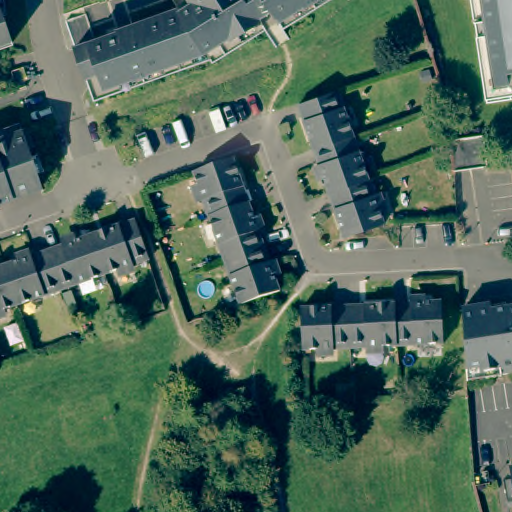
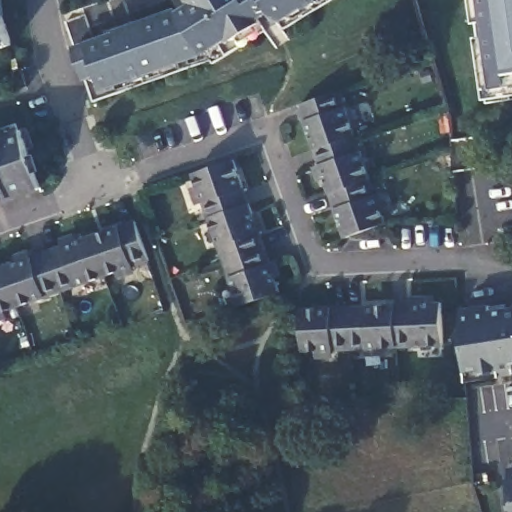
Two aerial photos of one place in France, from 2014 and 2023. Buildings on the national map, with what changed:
unchanged [(78,52),(74,40),(95,33),(100,46),(100,47),(102,46),(123,38),(122,36),(180,15),(180,14),(174,5),(180,0),(310,0),(319,15),(301,27),(292,32),(287,36),(293,46),(279,54),(267,36),(247,49),(245,50),(215,69),(212,65),(172,81),(167,83),(100,109),(92,91),(78,52)]
unchanged [(310,0),(343,0),(330,9),(319,15),(310,0)]
unchanged [(484,23),(477,24),(473,0),(512,0),(512,101),(497,104),(489,105),(478,38),(486,37),(484,23)]
unchanged [(9,36),(10,37),(12,45),(0,49),(0,7),(9,36)]
unchanged [(301,104),(342,90),(387,223),(344,237),(301,104)]
unchanged [(21,129),(22,135),(37,180),(41,188),(4,200),(0,201),(0,136),(21,129)]
unchanged [(456,138),(488,134),(491,161),(492,165),(457,172),(456,163),(456,138)]
unchanged [(237,306),(192,171),(232,158),(279,293),(237,306)]
unchanged [(145,264),(0,316),(0,271),(131,223),(145,264)]
unchanged [(442,345),(312,351),(300,351),(298,307),(311,307),(440,302),(442,345)]
unchanged [(467,381),(467,370),(466,356),(463,309),(491,304),(492,311),(512,307),(512,372),(502,374),(502,376),(468,381),(467,381)]
unchanged [(512,480),(510,468),(512,467),(512,480)]
unchanged [(512,507),(512,512),(509,512),(508,508),(512,507)]

